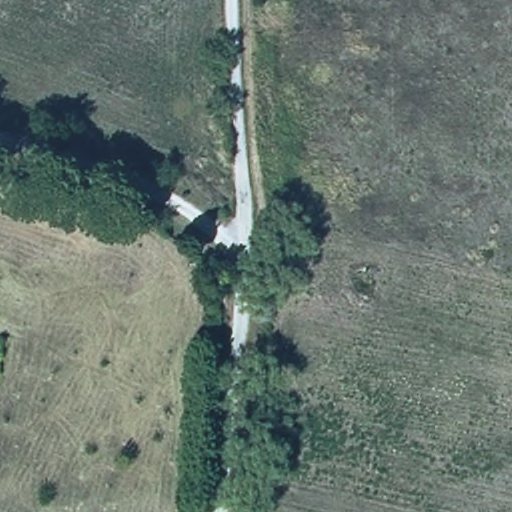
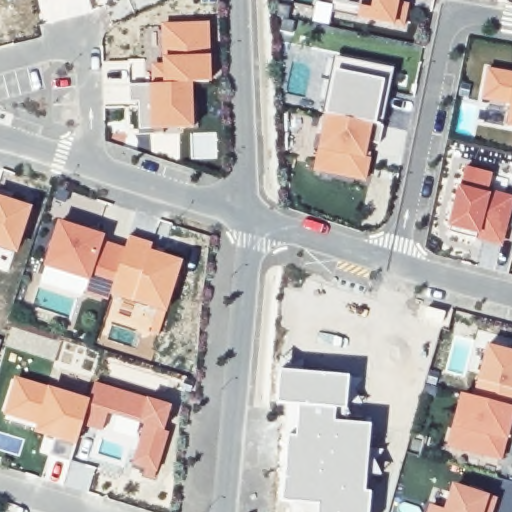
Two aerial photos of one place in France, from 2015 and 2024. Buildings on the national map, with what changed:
new [(397,0),(408,3),(402,30),(392,26),(355,18),(332,12),(333,5),(332,4),(332,0),(398,0),(397,0)]
new [(512,128),(505,126),(508,105),(480,100),(486,67),(512,72),(512,128)]
new [(137,102),(128,102),(127,85),(190,83),(190,106),(191,128),(184,128),(167,129),(167,134),(138,135),(138,130),(137,102)]
new [(363,180),(313,170),(325,115),(382,126),(377,144),(372,143),(368,158),(363,180)]
new [(217,131),(217,159),(191,160),(190,132),(217,131)]
new [(486,190),(510,197),(500,239),(477,232),(475,240),(447,233),(464,168),(490,175),(486,190)]
new [(32,205),(16,254),(0,248),(0,195),(32,205)]
new [(58,222),(101,236),(99,242),(122,250),(107,299),(83,291),(87,280),(45,266),(58,222)]
new [(500,460),(445,446),(450,426),(460,393),(472,396),(475,381),(485,343),(512,351),(512,416),(505,439),(500,460)]
new [(278,370),(348,375),(345,411),(338,410),(297,405),(275,402),(278,370)]
new [(89,397),(82,425),(71,460),(40,450),(45,436),(33,431),(36,425),(2,413),(15,375),(89,397)]
new [(89,397),(93,381),(172,405),(164,430),(142,423),(109,411),(102,431),(82,425),(89,397)]
new [(294,435),(297,405),(338,410),(337,419),(371,423),(365,490),(372,491),(369,512),(316,512),(317,505),(281,500),(287,435),(294,435)]
new [(142,423),(164,430),(168,431),(154,477),(141,473),(143,467),(130,463),(142,423)]
new [(95,467),(87,492),(64,484),(71,460),(95,467)]

